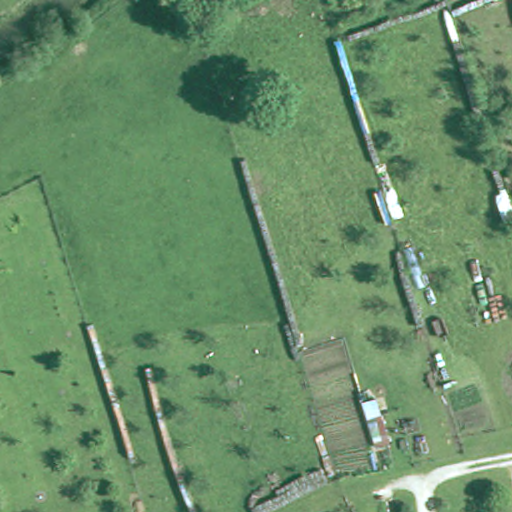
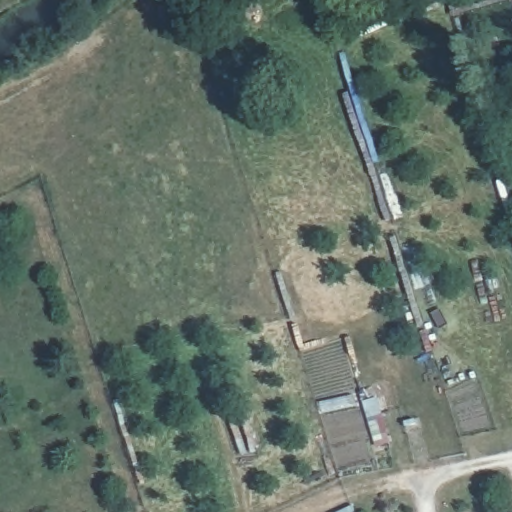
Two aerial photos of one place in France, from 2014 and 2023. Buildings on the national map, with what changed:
unchanged [(378,398),(383,414),(371,418),(365,401),(378,398)]

